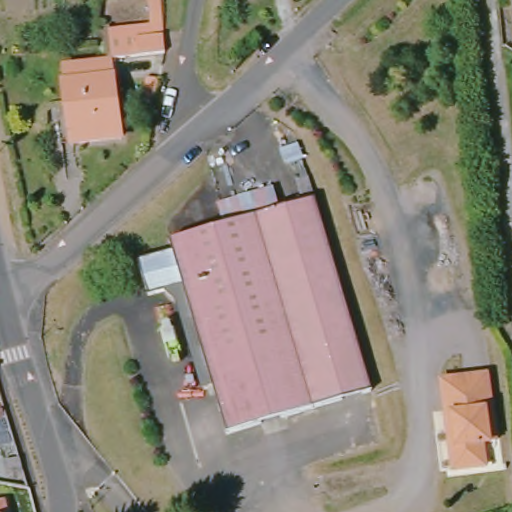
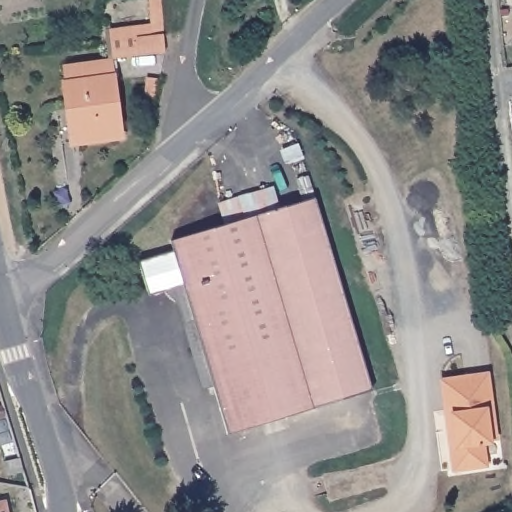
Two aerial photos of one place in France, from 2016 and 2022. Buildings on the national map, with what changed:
unchanged [(106,38),(130,35),(128,18),(155,16),(158,52),(108,56),(106,38)]
unchanged [(107,63),(115,140),(71,145),(67,106),(60,107),(53,69),(107,63)]
unchanged [(312,189),(370,388),(223,430),(175,281),(140,291),(130,256),(166,245),(162,234),(312,189)]
unchanged [(442,440),(454,438),(454,429),(447,428),(447,413),(440,412),(439,374),(486,372),(490,440),(476,440),(478,466),(442,465),(442,440)]
unchanged [(5,512),(0,512),(0,504),(4,503),(5,512)]

